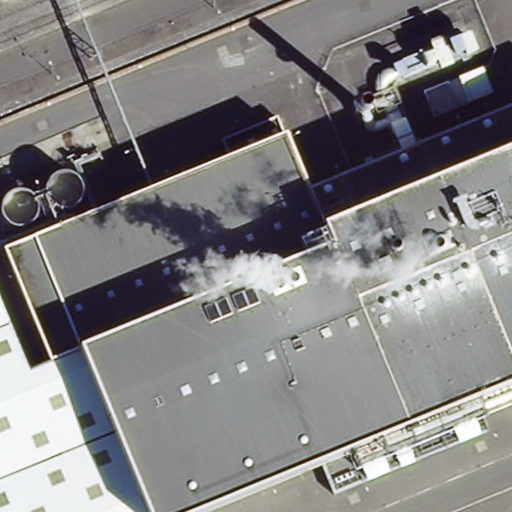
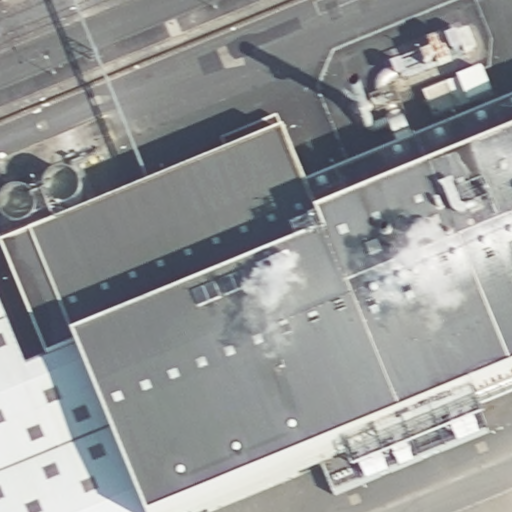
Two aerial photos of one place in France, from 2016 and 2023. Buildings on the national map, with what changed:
unchanged [(202,512),(142,512),(86,346),(53,360),(10,251),(288,137),(311,189),(512,105),(512,386),(202,512)]
unchanged [(0,302),(85,512),(0,512),(0,302)]

